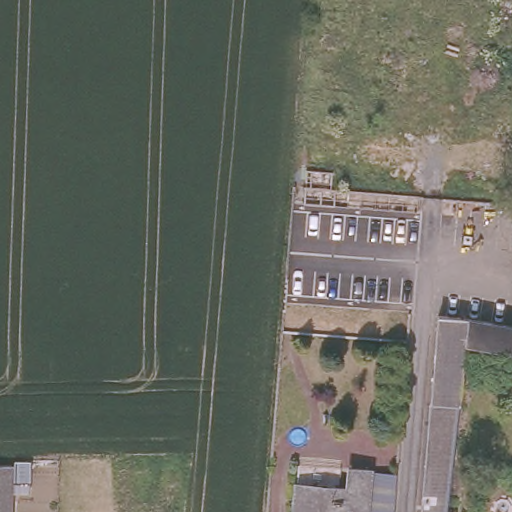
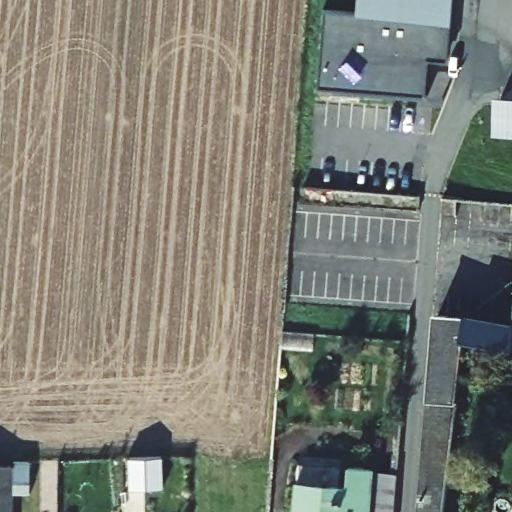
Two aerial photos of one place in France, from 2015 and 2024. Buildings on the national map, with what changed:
new [(446,59),(426,58),(423,94),(318,84),(325,9),(355,13),(356,0),(452,0),(450,22),(446,59)]
new [(512,137),(497,135),(498,97),(512,98),(512,137)]
demolished [(332,189),(381,193),(420,195),(418,210),(387,208),(305,202),(305,187),(332,189)]
unchanged [(512,326),(512,350),(465,342),(445,512),(422,512),(440,315),(464,318),(512,326)]
new [(161,456),(163,489),(129,489),(128,458),(161,456)]
unchanged [(30,492),(15,492),(15,461),(31,461),(30,492)]
unchanged [(13,467),(12,512),(0,512),(0,466),(13,467)]
unchanged [(373,471),(369,512),(296,512),(298,484),(348,489),(350,469),(373,471)]

